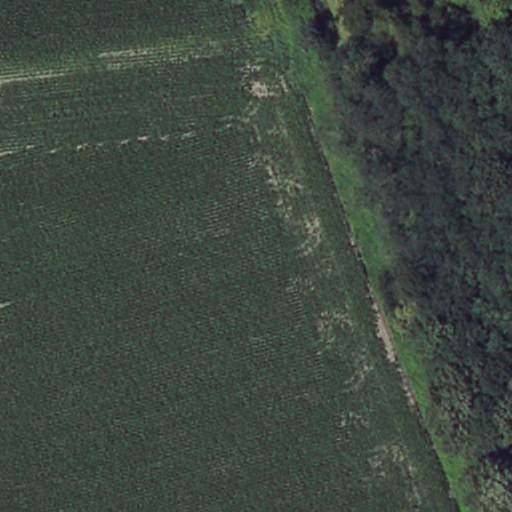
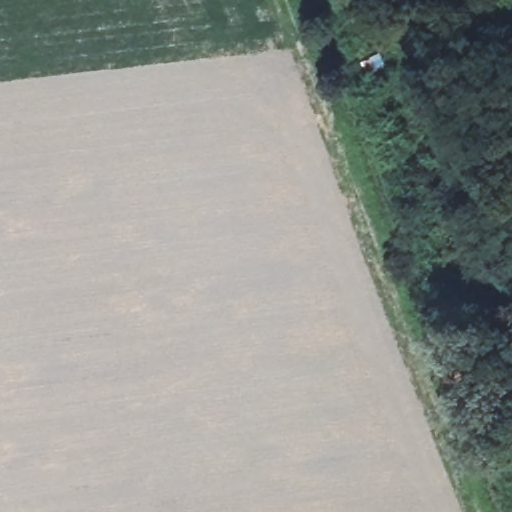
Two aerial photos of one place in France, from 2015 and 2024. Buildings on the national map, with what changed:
unchanged [(361,85),(353,61),(372,55),(381,79),(361,85)]

